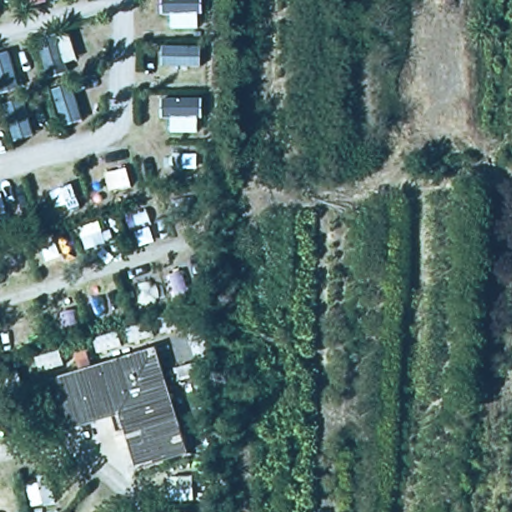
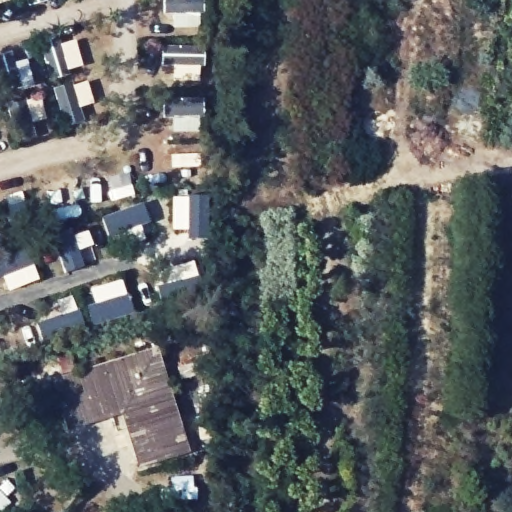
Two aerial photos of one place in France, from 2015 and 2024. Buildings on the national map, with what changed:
unchanged [(157,348),(187,450),(125,467),(115,436),(71,445),(47,377),(157,348)]

